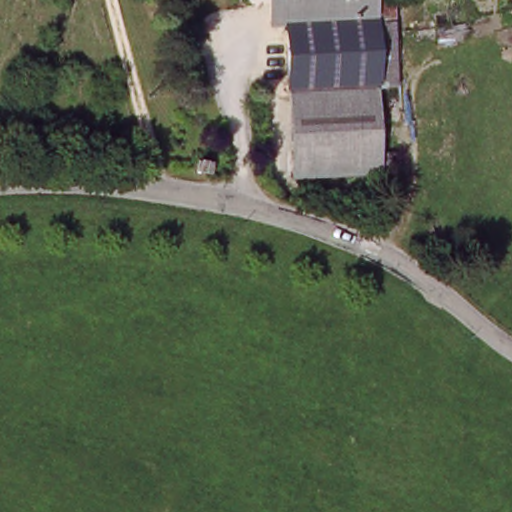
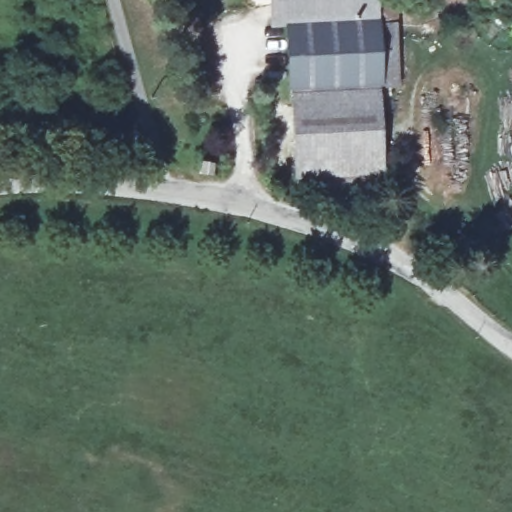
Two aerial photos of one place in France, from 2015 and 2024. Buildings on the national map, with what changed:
unchanged [(374,4),(394,3),(398,85),(380,86),(383,154),(395,153),(396,172),(300,177),(290,22),(273,22),(272,0),(374,0),(374,4)]
unchanged [(222,166),(220,181),(207,180),(209,165),(222,166)]

